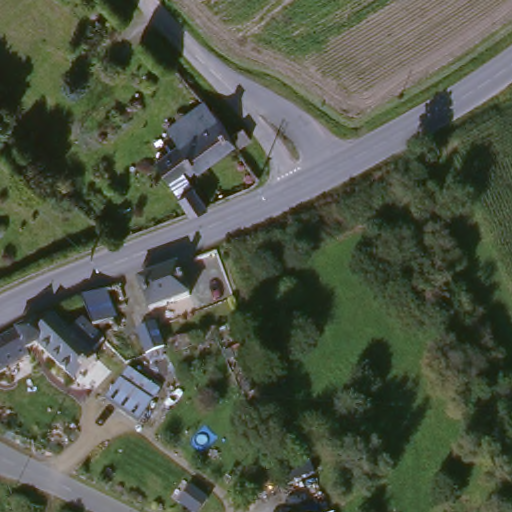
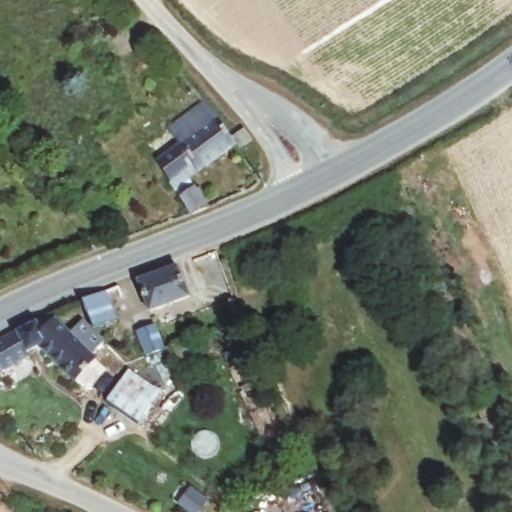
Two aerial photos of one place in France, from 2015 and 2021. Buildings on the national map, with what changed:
unchanged [(240,143),(202,168),(195,158),(185,165),(210,199),(193,207),(161,157),(184,140),(173,123),(209,98),(240,143)]
unchanged [(253,122),(259,134),(248,143),(239,130),(253,122)]
unchanged [(193,290),(155,305),(141,277),(180,261),(183,264),(193,290)]
unchanged [(127,302),(113,307),(117,316),(94,325),(81,298),(118,282),(127,302)]
unchanged [(83,317),(104,339),(101,343),(92,352),(96,357),(73,378),(34,339),(24,323),(55,312),(70,328),(78,321),(83,317)]
unchanged [(166,347),(148,354),(139,329),(158,322),(166,347)]
unchanged [(14,356),(0,366),(0,343),(2,342),(14,356)]
unchanged [(0,373),(0,369),(1,372),(0,373)]
unchanged [(125,371),(151,388),(158,393),(151,403),(136,425),(104,403),(125,371)]

